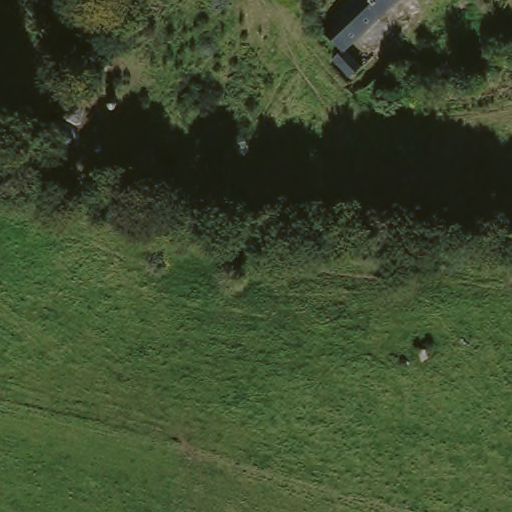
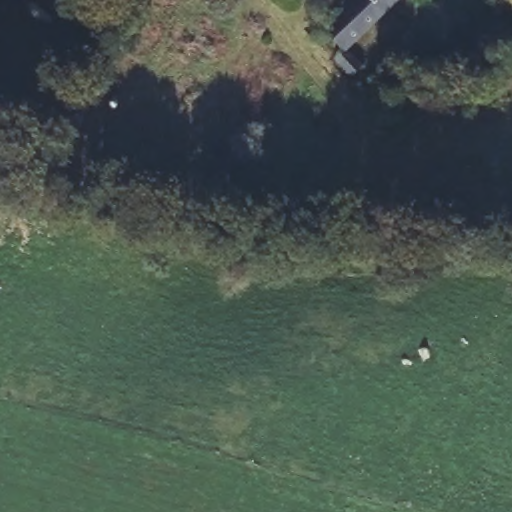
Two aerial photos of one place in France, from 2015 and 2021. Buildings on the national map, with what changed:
unchanged [(369,74),(358,86),(350,86),(333,69),(344,59),(319,35),(353,0),(398,0),(349,55),(369,74)]

